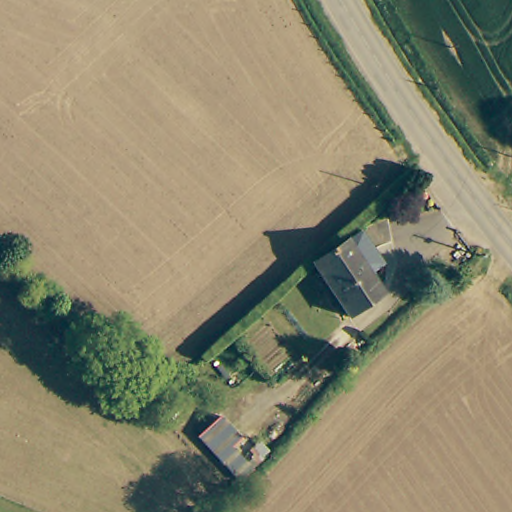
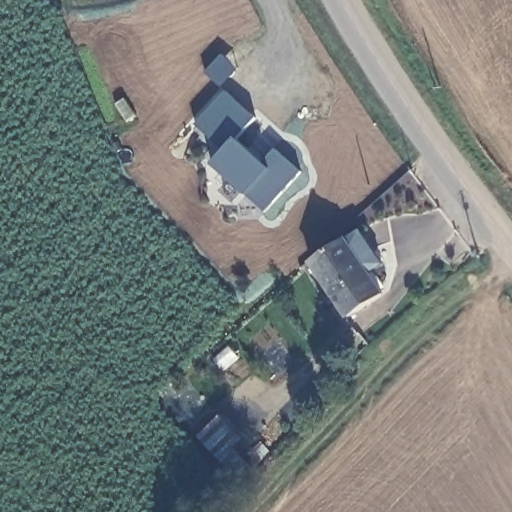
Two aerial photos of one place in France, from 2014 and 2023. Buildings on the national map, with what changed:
new [(256,117),(236,137),(266,165),(276,150),(302,173),(267,212),(247,194),(212,162),(224,149),(197,124),(226,91),(256,117)]
unchanged [(368,272),(379,289),(342,313),(307,259),(356,227),(380,264),(368,272)]
unchanged [(228,462),(200,433),(222,414),(244,438),(234,447),(238,451),(228,462)]
unchanged [(244,445),(261,461),(249,474),(244,477),(228,462),(244,445)]

